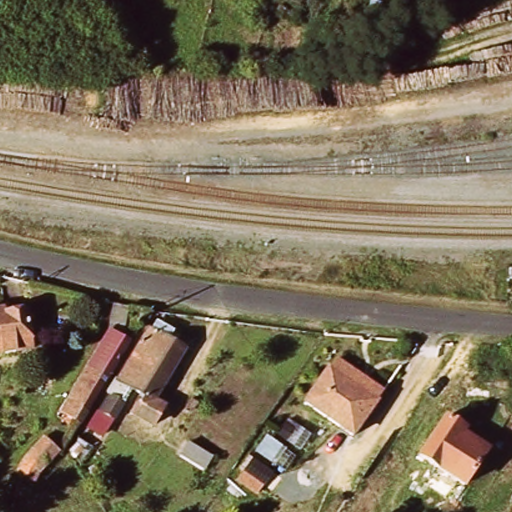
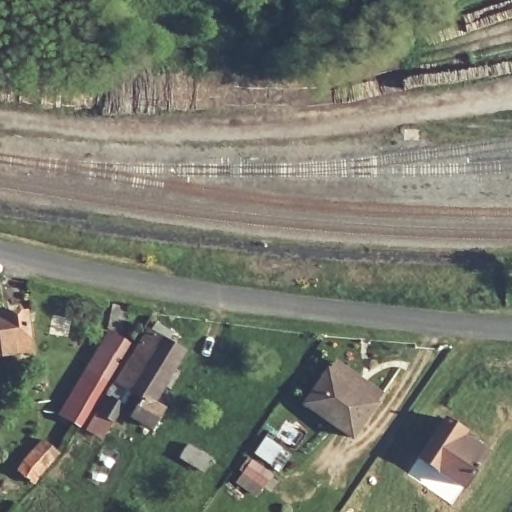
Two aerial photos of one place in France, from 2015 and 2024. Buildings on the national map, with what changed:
unchanged [(0,360),(0,305),(7,304),(29,301),(34,339),(35,354),(19,356),(0,360)]
unchanged [(125,306),(120,332),(104,329),(109,303),(125,306)]
unchanged [(156,320),(174,331),(169,339),(183,347),(153,398),(167,406),(156,426),(130,412),(141,394),(133,390),(143,372),(121,361),(142,324),(150,329),(156,320)]
unchanged [(78,426),(59,416),(106,333),(126,338),(78,426)]
unchanged [(143,372),(133,390),(123,406),(114,422),(103,440),(85,430),(95,413),(105,396),(103,395),(113,382),(121,361),(143,372)]
unchanged [(309,404),(332,370),(337,362),(386,394),(381,402),(357,436),(309,404)]
unchanged [(421,459),(446,421),(469,437),(466,442),(486,456),(463,490),(421,459)]
unchanged [(264,428),(286,440),(276,458),(270,456),(246,489),(227,481),(264,428)]
unchanged [(58,458),(38,479),(23,464),(43,444),(58,458)]

